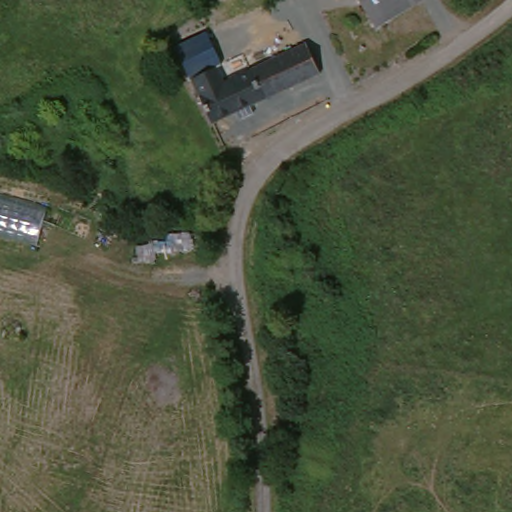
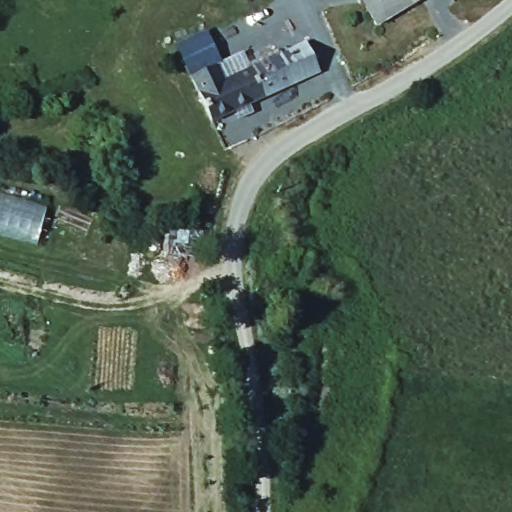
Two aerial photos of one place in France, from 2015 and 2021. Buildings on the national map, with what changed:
unchanged [(359,0),(420,0),(374,26),(359,0)]
unchanged [(199,98),(174,45),(207,29),(222,62),(216,65),(226,86),(199,98)]
unchanged [(203,117),(196,100),(305,52),(318,77),(248,107),(252,121),(234,128),(227,117),(208,126),(203,117)]

